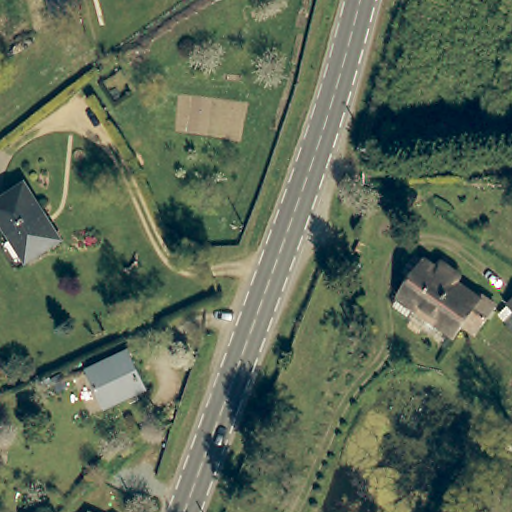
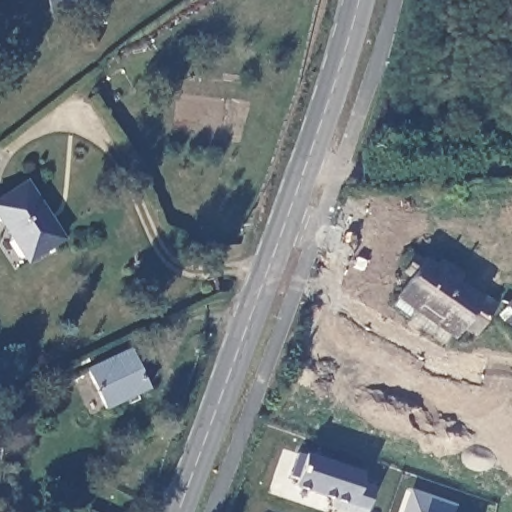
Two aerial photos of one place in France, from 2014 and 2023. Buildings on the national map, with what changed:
unchanged [(59,237),(28,260),(0,218),(0,199),(25,182),(59,237)]
unchanged [(479,341),(456,326),(443,346),(389,307),(425,256),(497,307),(479,341)]
unchanged [(508,305),(512,302),(512,310),(508,305)]
unchanged [(128,349),(145,387),(106,406),(89,369),(128,349)]
new [(297,452),(304,454),(304,453),(361,471),(358,481),(372,485),(363,512),(347,512),(330,506),(333,498),(293,485),(296,477),(289,474),(297,452)]
new [(408,490),(450,504),(447,512),(401,512),(408,490)]

